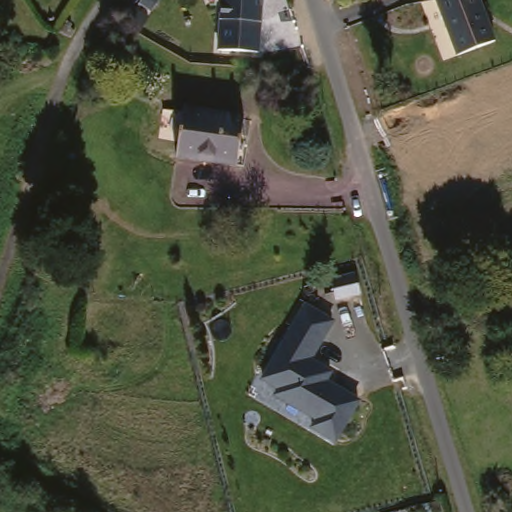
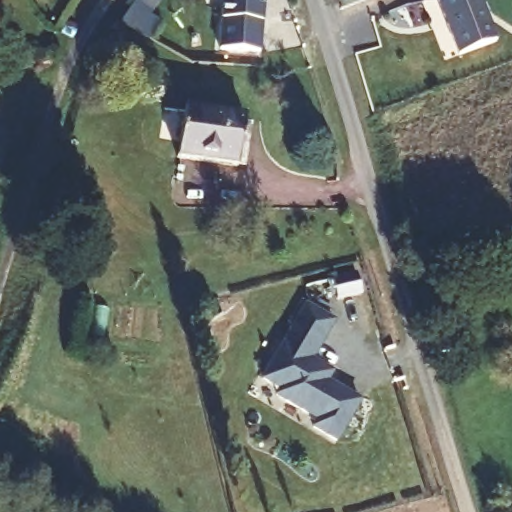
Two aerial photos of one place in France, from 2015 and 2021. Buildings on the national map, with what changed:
unchanged [(222,25),(222,19),(219,19),(221,0),(264,0),(263,22),(259,52),(219,49),(222,25)]
unchanged [(501,36),(463,51),(444,0),(487,0),(501,36)]
unchanged [(245,117),(237,166),(177,158),(184,108),(245,117)]
unchanged [(305,303),(332,319),(313,355),(338,367),(332,378),(363,398),(337,440),(315,429),(318,421),(271,393),(275,387),(262,375),(305,303)]
unchanged [(440,512),(413,512),(412,508),(438,503),(440,512)]

